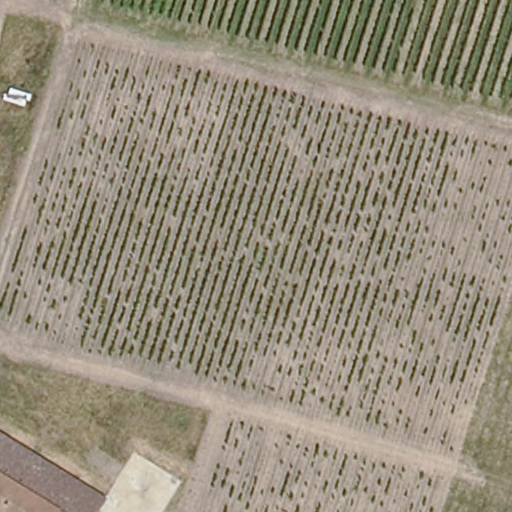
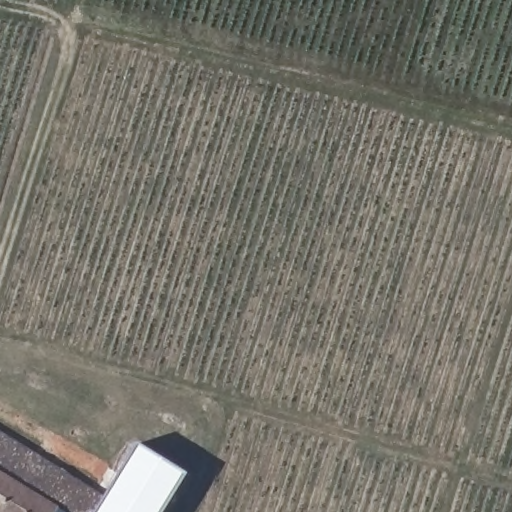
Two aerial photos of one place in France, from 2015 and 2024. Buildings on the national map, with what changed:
unchanged [(9,439),(33,453),(98,494),(107,500),(101,510),(100,512),(4,512),(3,511),(3,512),(0,512),(0,433),(9,439)]
new [(187,475),(164,512),(100,512),(101,510),(107,500),(137,445),(187,475)]

